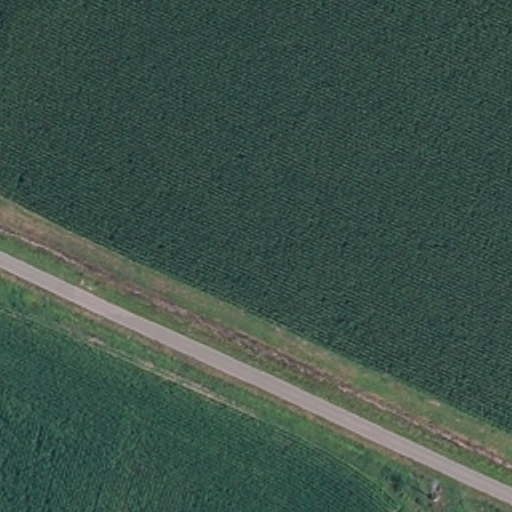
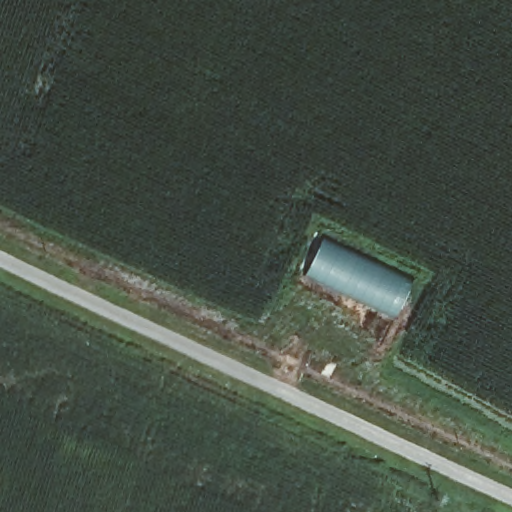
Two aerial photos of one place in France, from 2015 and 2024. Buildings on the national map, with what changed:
new [(322,235),(415,279),(397,319),(362,304),(303,274),(322,235)]

